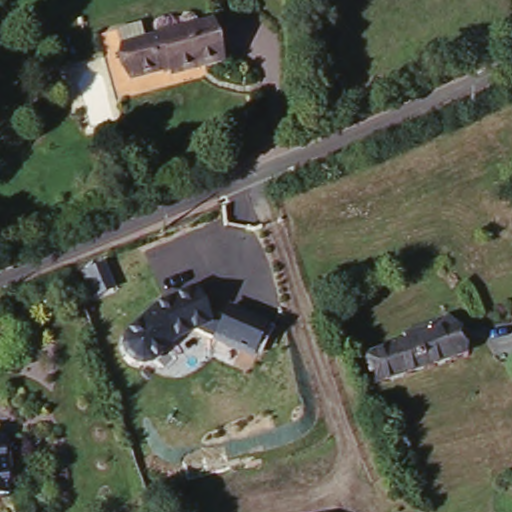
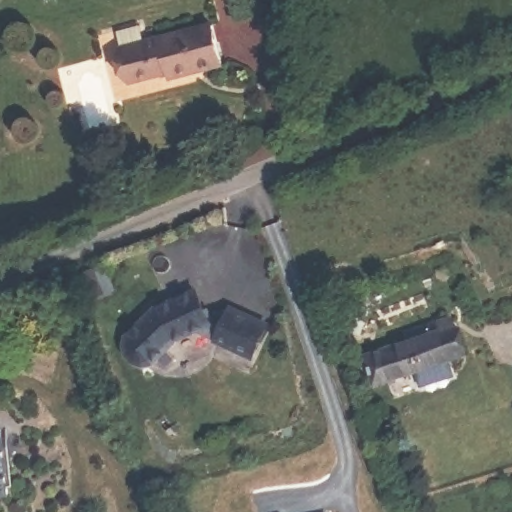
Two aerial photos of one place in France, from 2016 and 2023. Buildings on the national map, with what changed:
unchanged [(225,68),(173,80),(171,74),(133,83),(125,48),(121,31),(145,26),(149,43),(217,29),(225,68)]
unchanged [(176,340),(158,362),(151,365),(144,366),(134,363),(127,354),(129,334),(156,309),(199,294),(213,325),(176,340)]
unchanged [(259,357),(217,340),(231,303),(273,319),(259,357)]
unchanged [(470,354),(385,383),(376,355),(424,340),(422,330),(459,317),(470,354)]
unchanged [(8,493),(3,494),(4,498),(0,498),(0,435),(2,435),(8,493)]

